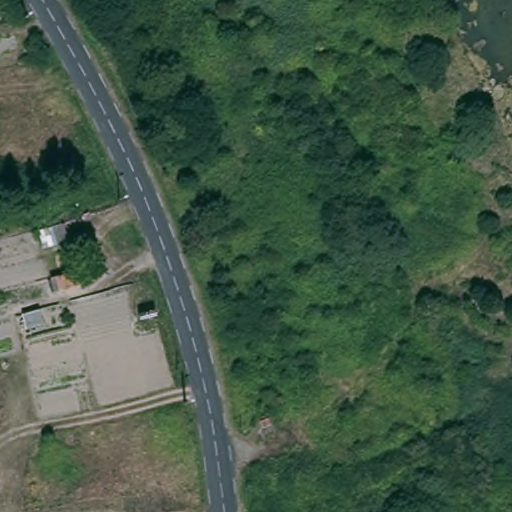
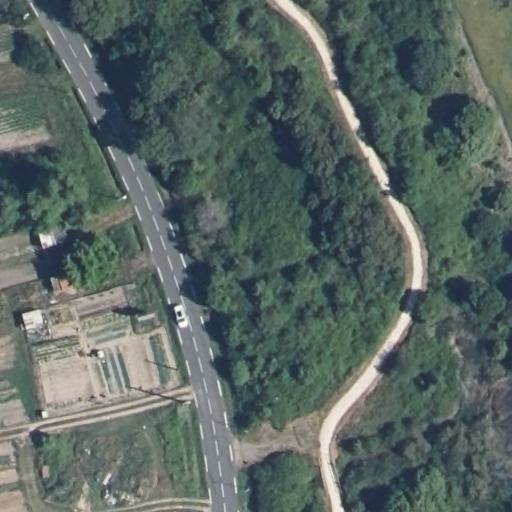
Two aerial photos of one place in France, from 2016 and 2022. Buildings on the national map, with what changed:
unchanged [(75,267),(79,280),(58,286),(54,273),(75,267)]

